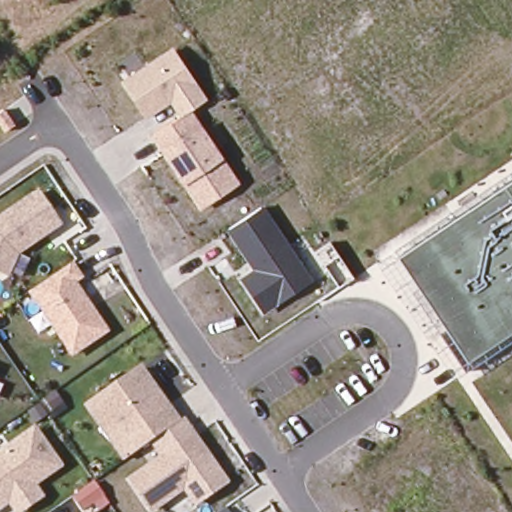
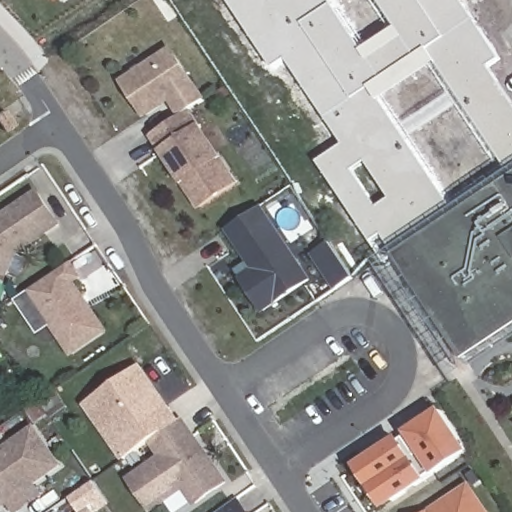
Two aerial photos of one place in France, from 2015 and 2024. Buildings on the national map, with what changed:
new [(63,1),(63,0),(64,0),(63,1)]
new [(332,5),(363,50),(397,28),(378,0),(460,0),(500,60),(489,66),(512,100),(512,176),(436,64),(378,102),(457,218),(398,258),(381,234),(370,241),(318,162),(342,145),(285,59),(272,68),(229,0),(329,0),(332,5)]
unchanged [(193,109),(241,185),(200,211),(152,136),(181,117),(171,102),(144,119),(120,82),(174,47),(208,99),(193,109)]
unchanged [(406,272),(395,260),(512,180),(512,327),(469,354),(406,272)]
unchanged [(20,255),(10,278),(0,274),(0,214),(38,189),(64,227),(20,255)]
unchanged [(279,309),(276,305),(263,313),(240,278),(253,269),(228,230),(265,207),(316,281),(279,309)]
new [(337,288),(322,267),(313,253),(328,242),(337,257),(352,279),(337,288)]
unchanged [(73,359),(29,294),(74,264),(85,279),(78,284),(111,332),(73,359)]
unchanged [(186,493),(156,512),(151,512),(128,479),(160,457),(150,443),(122,463),(82,406),(142,365),(182,421),(186,418),(231,485),(197,507),(186,493)]
new [(436,411),(462,451),(387,501),(360,461),(436,411)]
unchanged [(46,498),(26,512),(16,512),(9,504),(0,511),(0,451),(36,426),(65,467),(37,486),(46,498)]
new [(484,512),(426,512),(466,486),(484,512)]
unchanged [(229,512),(222,512),(226,509),(229,512)]
unchanged [(93,512),(91,512),(92,511),(93,512)]

